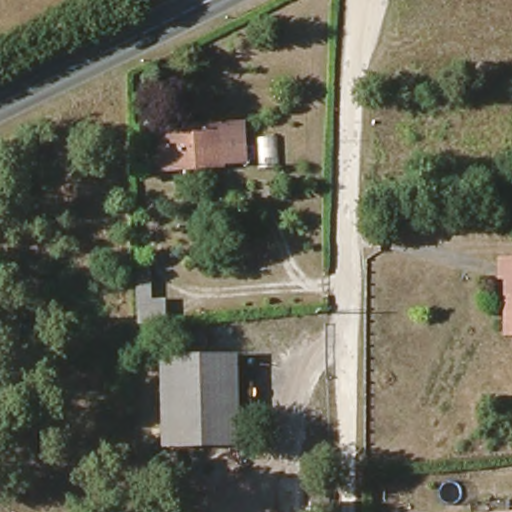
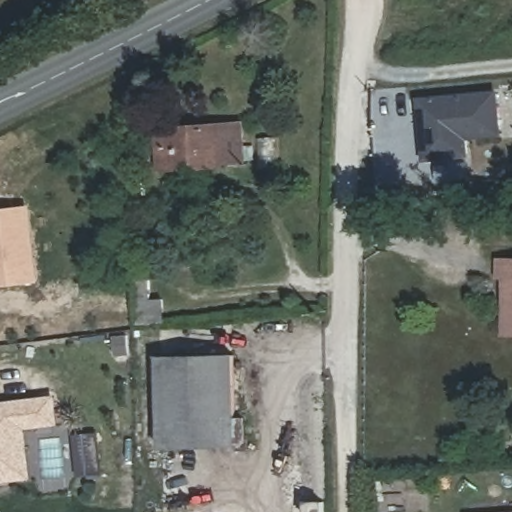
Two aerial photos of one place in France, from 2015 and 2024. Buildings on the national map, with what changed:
new [(468,140),(470,156),(425,162),(418,99),(498,90),(503,136),(468,140)]
unchanged [(245,160),(222,161),(222,164),(161,167),(159,127),(243,122),(245,160)]
unchanged [(256,168),(253,138),(270,136),(275,167),(256,168)]
new [(30,206),(39,283),(0,288),(0,210),(30,206)]
unchanged [(510,264),(512,264),(512,280),(510,280),(510,264)]
unchanged [(134,327),(132,289),(131,268),(145,268),(146,288),(147,303),(159,302),(160,326),(134,327)]
unchanged [(237,423),(245,422),(245,447),(237,448),(237,450),(162,452),(160,360),(235,358),(237,423)]
new [(55,395),(59,425),(21,426),(32,480),(0,484),(0,402),(55,395)]
new [(74,436),(96,433),(101,475),(77,477),(74,436)]

